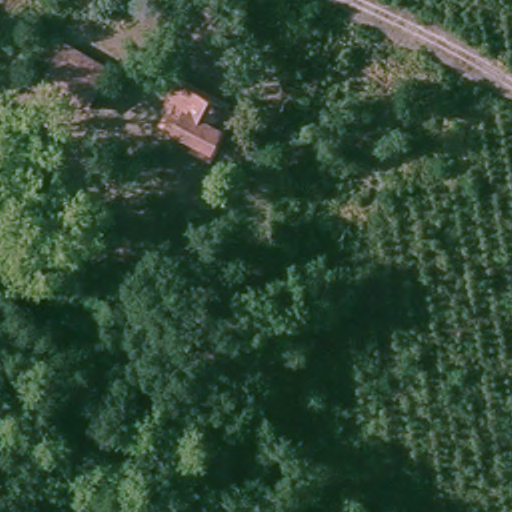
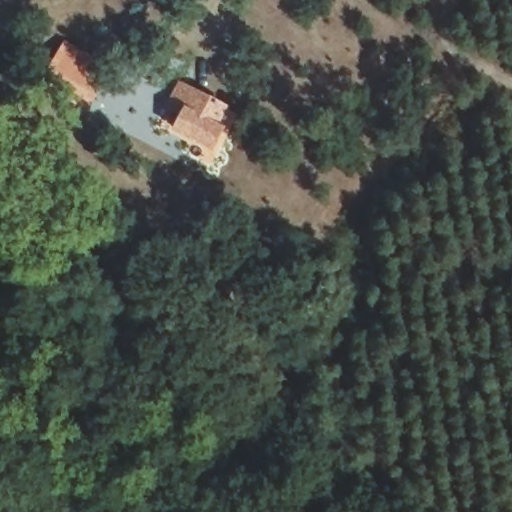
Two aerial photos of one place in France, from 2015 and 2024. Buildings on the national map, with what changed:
unchanged [(70,51),(108,71),(88,107),(50,89),(70,51)]
unchanged [(178,114),(196,84),(230,104),(214,135),(178,114)]

